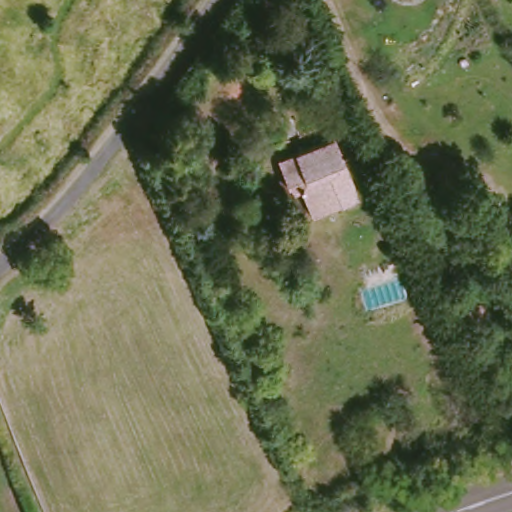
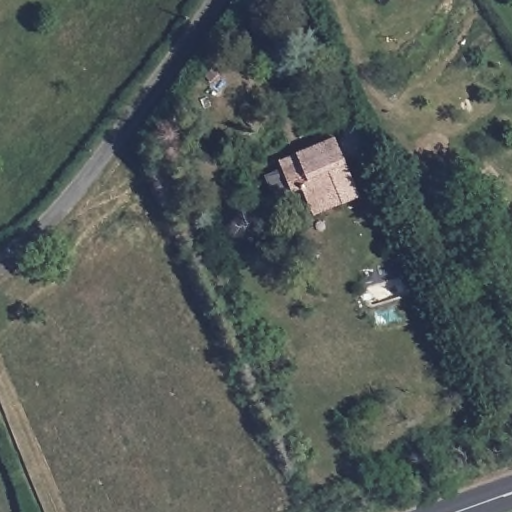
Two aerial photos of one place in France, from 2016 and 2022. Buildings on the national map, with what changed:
unchanged [(335,133),(361,192),(344,200),(340,191),(313,202),(304,184),(294,187),(280,158),(335,133)]

